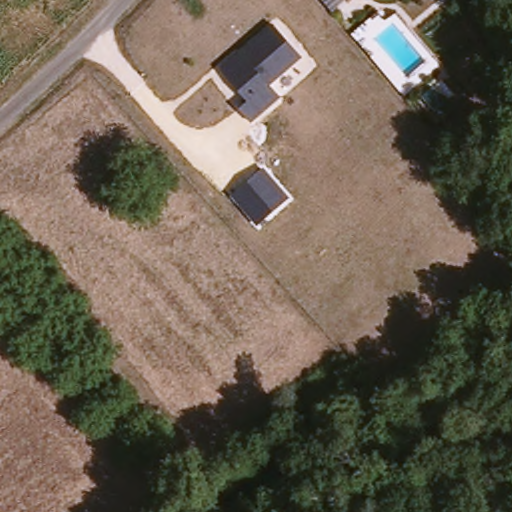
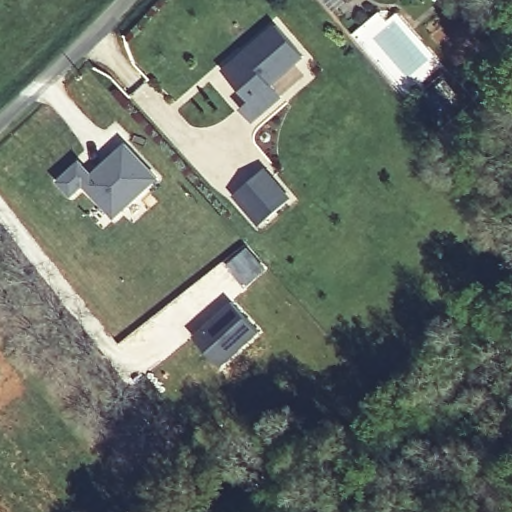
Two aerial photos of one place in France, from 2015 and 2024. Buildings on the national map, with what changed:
unchanged [(323,0),(354,0),(352,2),(333,15),(323,0)]
unchanged [(246,103),(219,71),(275,22),(305,59),(275,86),(287,99),(255,126),(240,108),(246,103)]
new [(112,220),(83,188),(70,199),(55,182),(82,160),(93,173),(127,142),(160,179),(112,220)]
new [(257,227),(231,196),(267,165),(292,195),(257,227)]
new [(247,245),(267,269),(242,289),(223,265),(247,245)]
new [(232,300),(260,332),(218,368),(191,336),(232,300)]

